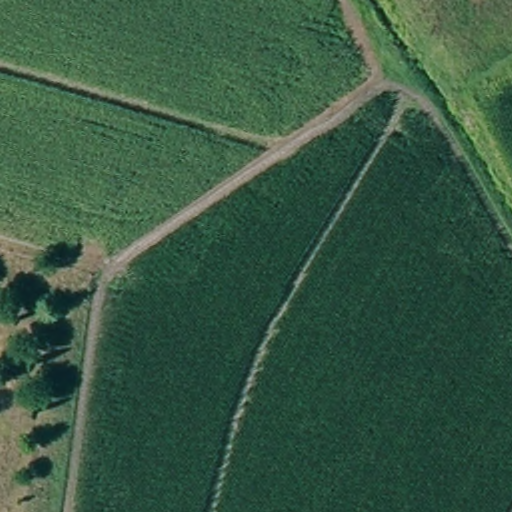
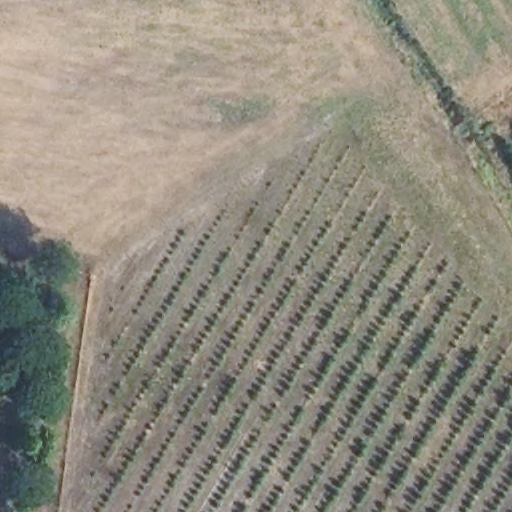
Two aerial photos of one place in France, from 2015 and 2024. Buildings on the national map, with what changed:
[]

